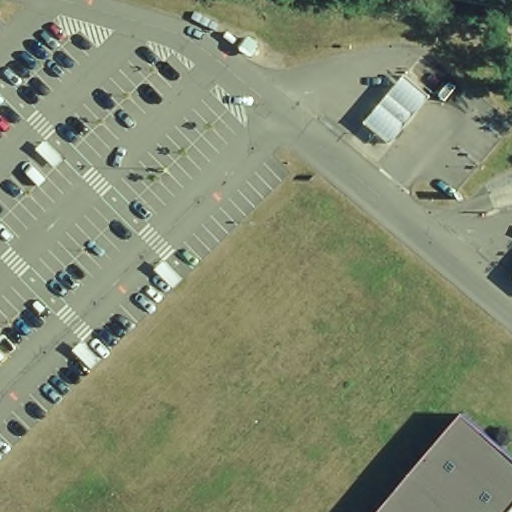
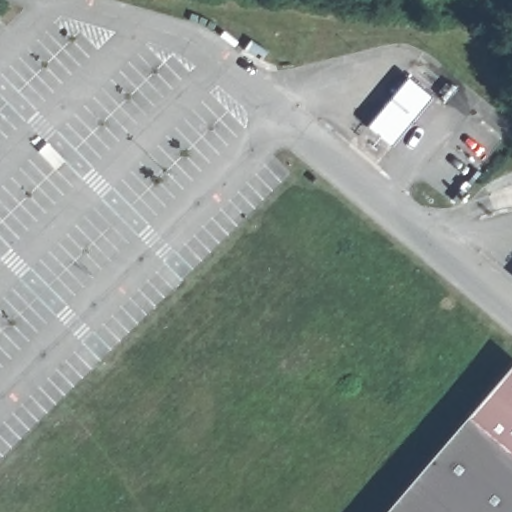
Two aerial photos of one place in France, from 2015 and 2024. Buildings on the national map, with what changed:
unchanged [(431,97),(393,144),(371,127),(410,80),(431,97)]
new [(512,357),(512,456),(466,416),(512,357)]
unchanged [(383,512),(466,416),(512,456),(512,512),(383,512)]

